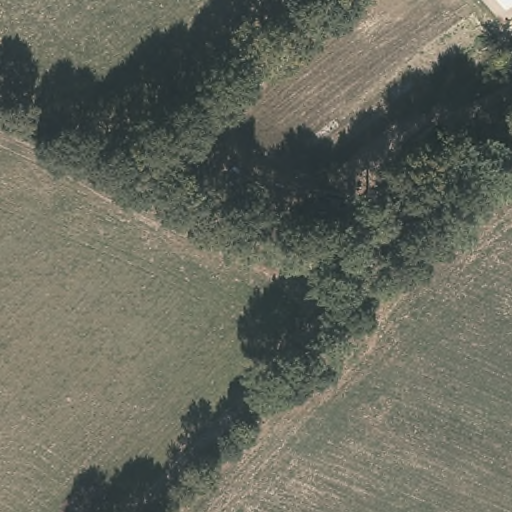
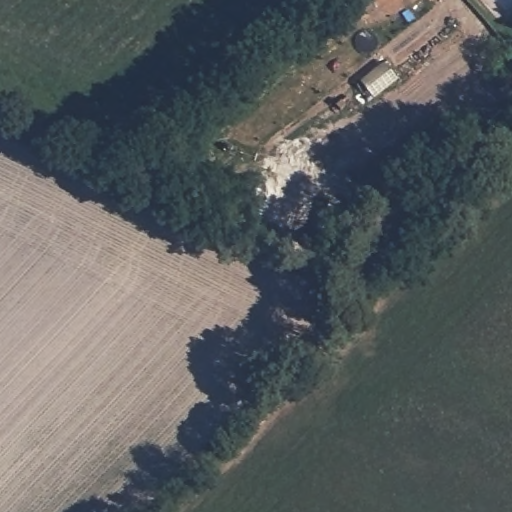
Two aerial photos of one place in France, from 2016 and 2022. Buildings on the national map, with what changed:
[]

